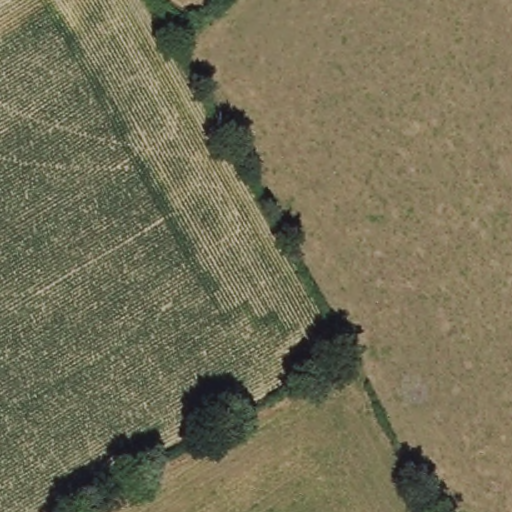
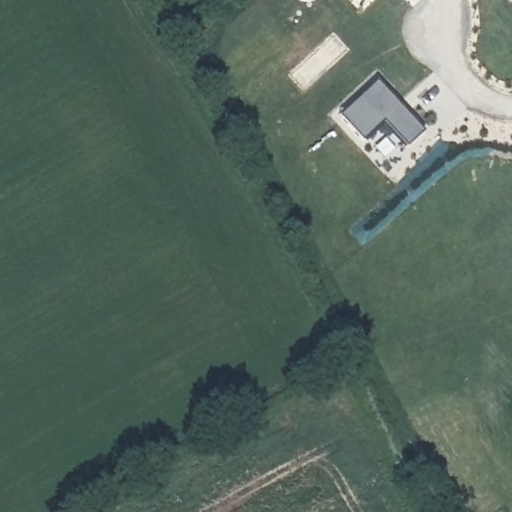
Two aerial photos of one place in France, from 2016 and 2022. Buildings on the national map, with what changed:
new [(423,131),(407,147),(382,123),(362,140),(340,115),(377,83),(423,131)]

